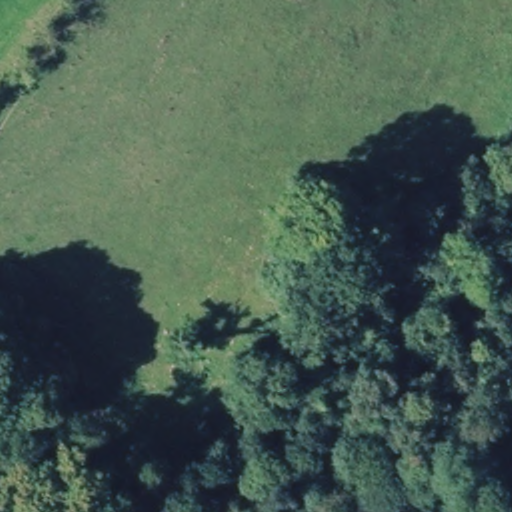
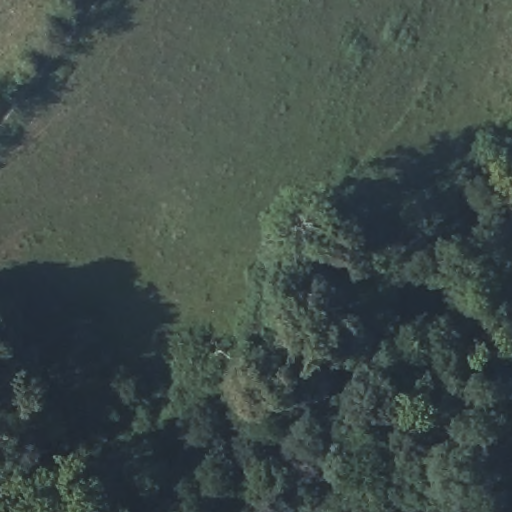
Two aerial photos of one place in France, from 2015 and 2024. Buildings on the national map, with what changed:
[]

